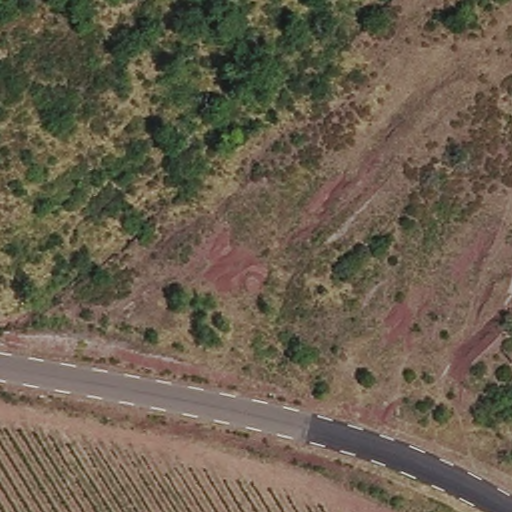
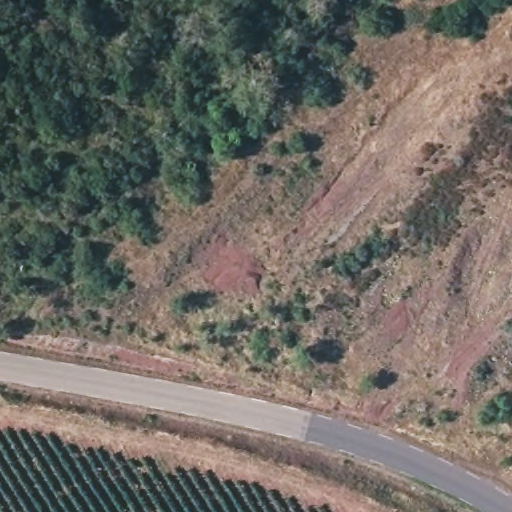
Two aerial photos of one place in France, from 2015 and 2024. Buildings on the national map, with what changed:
[]

